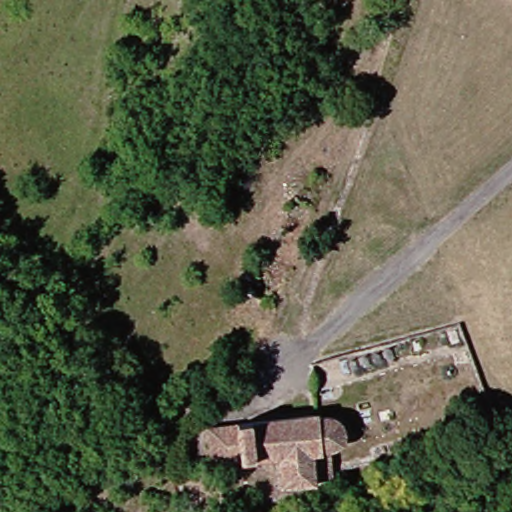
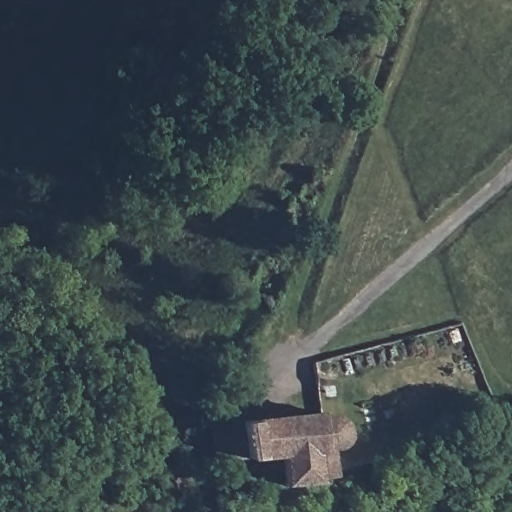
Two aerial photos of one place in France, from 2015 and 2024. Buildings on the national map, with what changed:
unchanged [(285,463),(220,469),(219,432),(316,414),(330,413),(335,418),(340,425),(342,432),(342,441),(335,447),(329,456),(332,477),(290,486),(285,463)]

